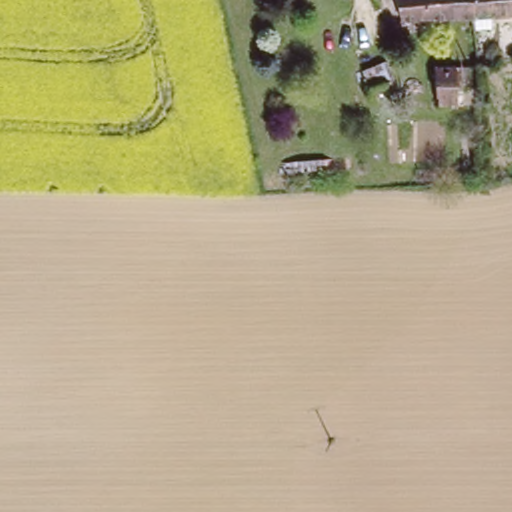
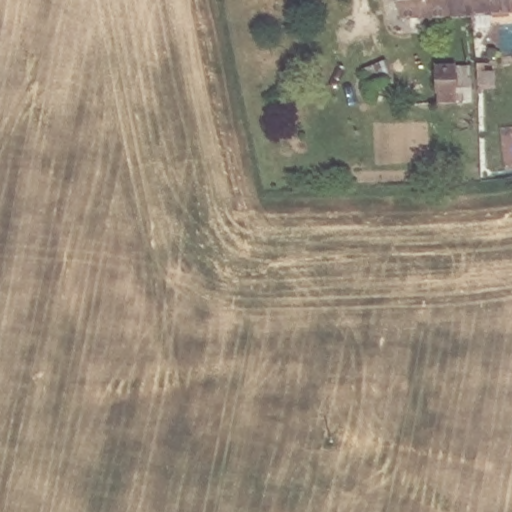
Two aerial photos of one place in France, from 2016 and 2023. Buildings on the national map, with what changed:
unchanged [(395,13),(394,0),(461,0),(462,11),(395,13)]
unchanged [(482,17),(481,26),(463,27),(462,11),(461,0),(512,0),(512,18),(482,17)]
unchanged [(471,66),(473,90),(459,90),(459,100),(436,100),(434,69),(471,66)]

